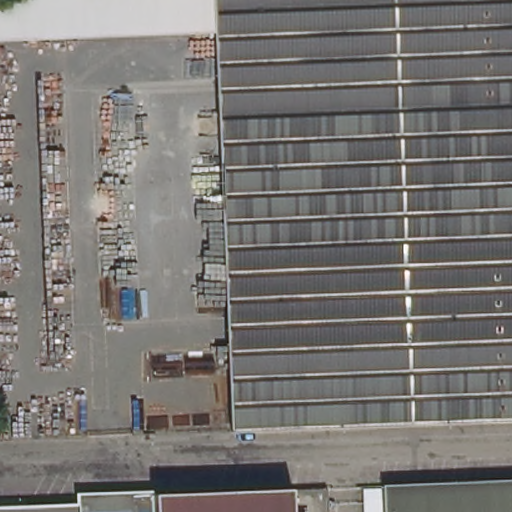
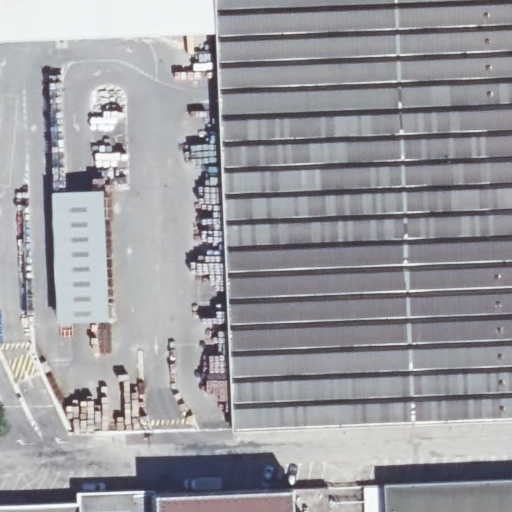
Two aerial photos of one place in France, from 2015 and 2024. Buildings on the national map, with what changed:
unchanged [(0,44),(0,0),(217,0),(218,35),(0,44)]
unchanged [(505,418),(474,420),(416,422),(413,422),(386,423),(384,423),(356,425),(354,425),(326,426),(324,426),(296,427),(294,427),(266,428),(264,428),(236,430),(234,430),(232,378),(226,251),(218,35),(217,0),(512,0),(512,418),(505,418)]
new [(103,190),(108,321),(57,323),(51,192),(103,190)]
unchanged [(363,486),(384,486),(512,480),(512,512),(363,512),(363,486)]
unchanged [(326,487),(328,512),(294,512),(294,488),(326,487)]
unchanged [(294,488),(294,512),(160,512),(159,492),(294,488)]
unchanged [(159,492),(160,512),(137,512),(137,501),(81,502),(82,496),(159,492)]
unchanged [(137,501),(137,512),(0,512),(0,505),(81,502),(137,501)]

